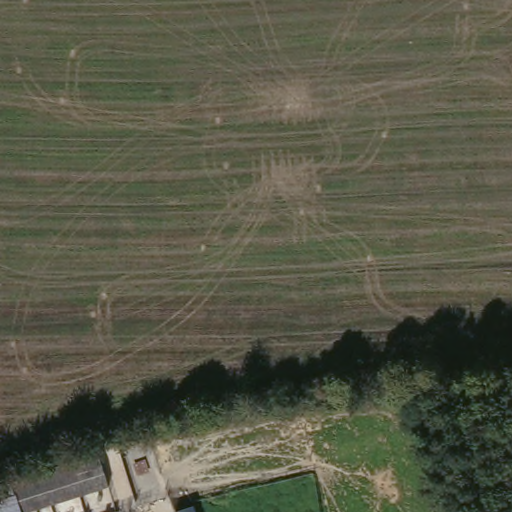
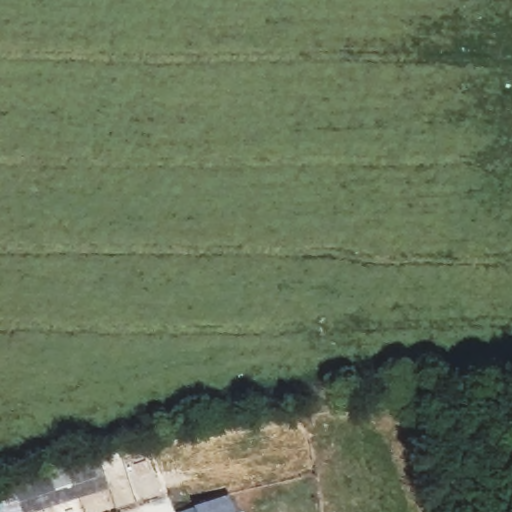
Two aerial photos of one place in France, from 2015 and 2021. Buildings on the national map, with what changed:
unchanged [(99,455),(110,488),(30,512),(0,512),(0,484),(11,481),(99,455)]
new [(176,512),(229,493),(235,512),(176,512)]

